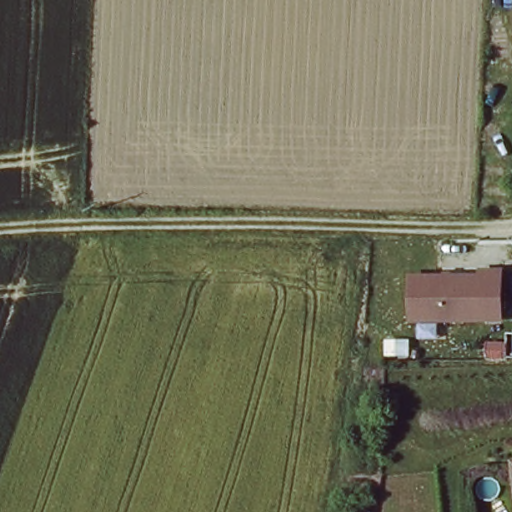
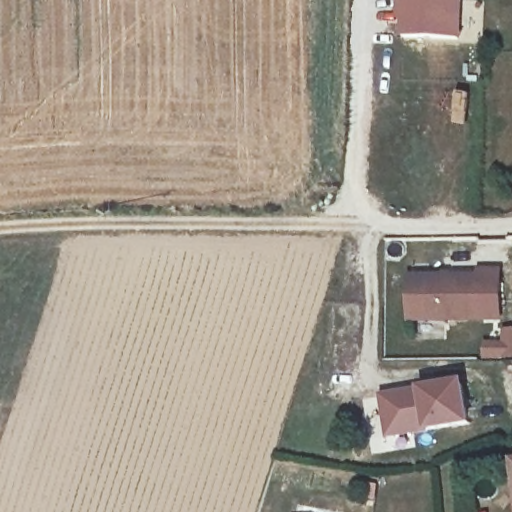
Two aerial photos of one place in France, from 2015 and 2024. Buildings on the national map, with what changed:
new [(457,36),(402,35),(404,9),(398,9),(398,0),(458,0),(457,36)]
unchanged [(478,277),(478,272),(498,272),(499,320),(409,322),(408,279),(478,277)]
unchanged [(505,344),(505,332),(512,332),(512,357),(485,356),(485,344),(505,344)]
new [(470,425),(426,432),(386,439),(378,394),(419,387),(463,381),(470,425)]
unchanged [(511,456),(512,456),(512,463),(511,456)]

